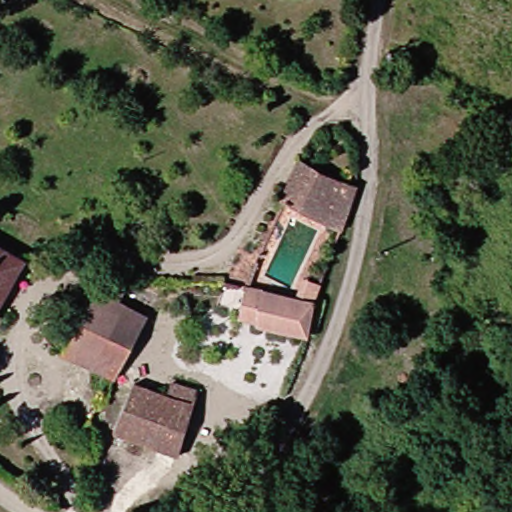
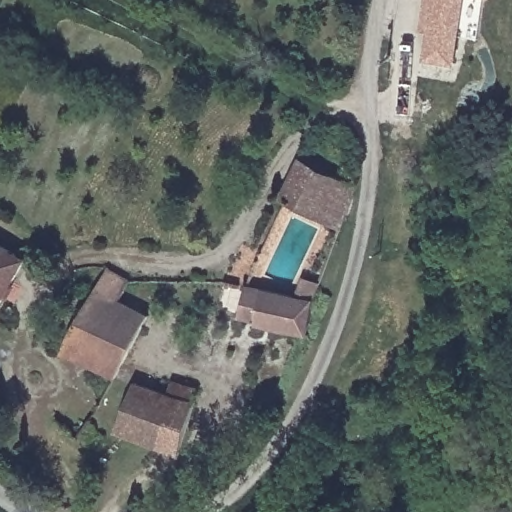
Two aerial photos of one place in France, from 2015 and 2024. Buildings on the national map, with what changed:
new [(428,61),(432,32),(423,31),(427,0),(465,0),(455,65),(428,61)]
unchanged [(352,186),(353,190),(338,229),(274,203),(289,163),(352,186)]
unchanged [(0,299),(0,258),(19,270),(0,299)]
unchanged [(149,318),(116,383),(63,358),(100,283),(105,273),(129,283),(124,294),(120,303),(149,318)]
unchanged [(229,319),(239,286),(292,301),(296,288),(310,292),(306,305),(295,339),(229,319)]
unchanged [(106,435),(125,386),(158,398),(162,387),(188,395),(166,457),(106,435)]

